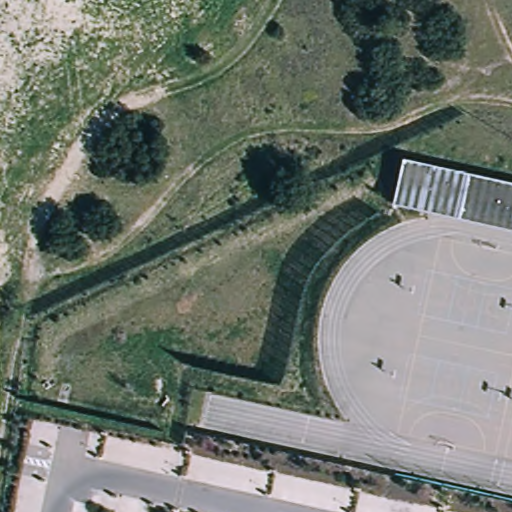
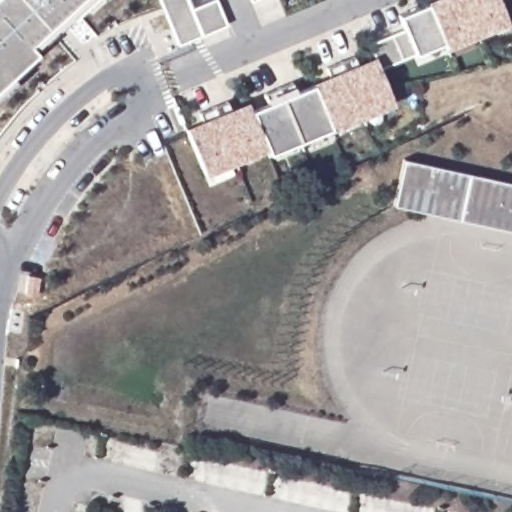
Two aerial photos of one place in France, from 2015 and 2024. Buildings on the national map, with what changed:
new [(79,20),(73,12),(34,46),(41,53),(0,89),(0,0),(101,0),(79,20)]
new [(230,32),(205,42),(182,52),(161,0),(187,0),(194,15),(219,5),(230,32)]
new [(202,119),(231,107),(236,120),(252,113),(253,116),(271,109),(266,97),(294,85),(299,97),(334,83),(329,71),(357,60),(362,72),(379,65),(373,50),(409,36),(403,22),(432,10),(434,13),(450,7),(447,0),(500,0),(512,29),(450,54),(447,50),(383,76),(397,109),(272,160),(269,154),(207,179),(190,138),(207,131),(202,119)]
new [(255,7),(251,0),(272,0),(255,7)]
new [(449,4),(450,7),(434,13),(432,10),(449,4)]
new [(378,62),(379,65),(362,72),(360,69),(378,62)]
new [(333,80),(334,83),(299,97),(298,94),(333,80)]
new [(271,109),(253,116),(252,113),(270,106),(271,109)]
new [(252,113),(236,120),(234,117),(251,110),(252,113)]
new [(206,128),(207,131),(190,138),(189,135),(206,128)]
unchanged [(415,162),(512,182),(512,219),(422,200),(420,210),(395,205),(405,159),(415,162)]

